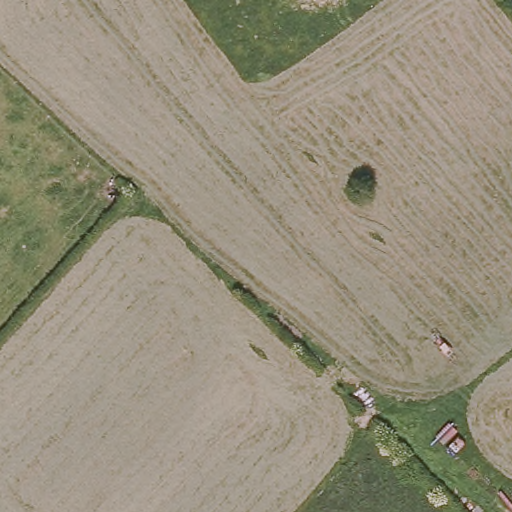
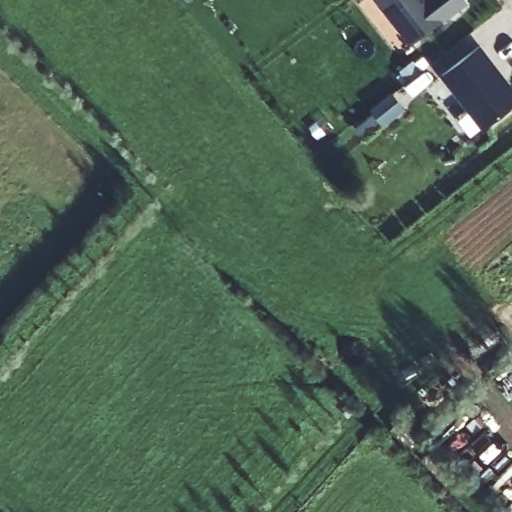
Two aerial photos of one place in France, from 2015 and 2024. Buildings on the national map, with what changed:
new [(469,2),(411,44),(377,0),(467,0),(469,2)]
new [(512,84),(512,108),(483,130),(441,75),(482,45),(512,84)]

